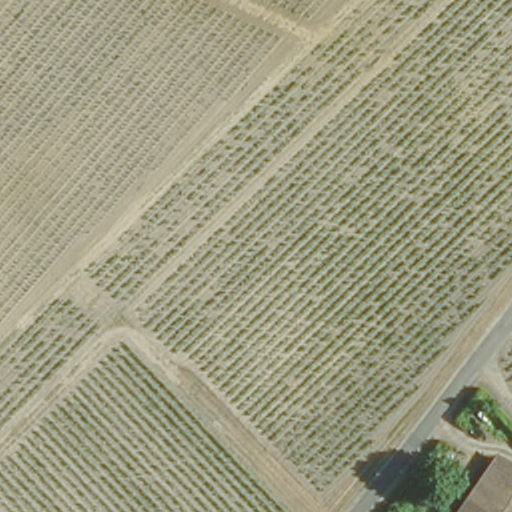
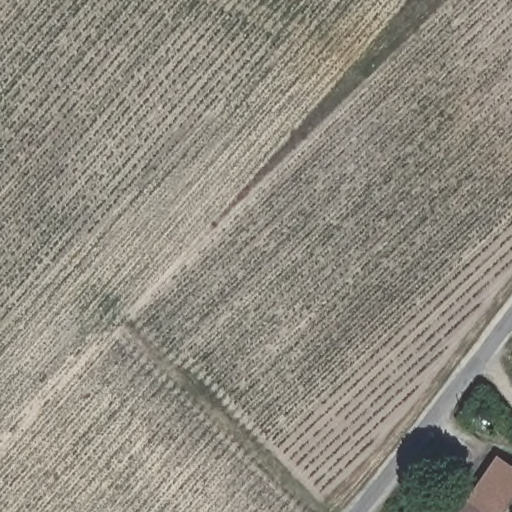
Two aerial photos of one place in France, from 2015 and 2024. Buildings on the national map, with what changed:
unchanged [(512,464),(512,485),(493,512),(453,512),(494,452),(512,464)]

